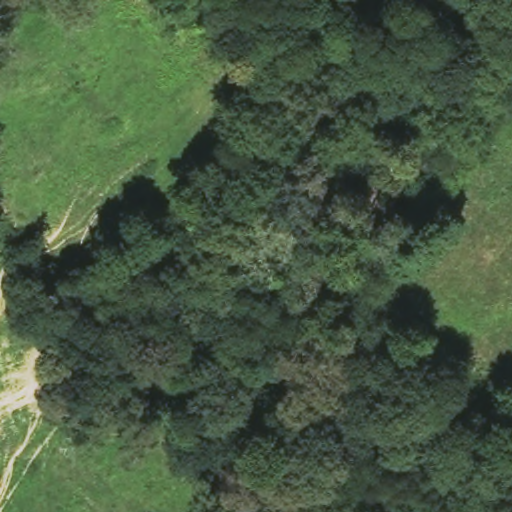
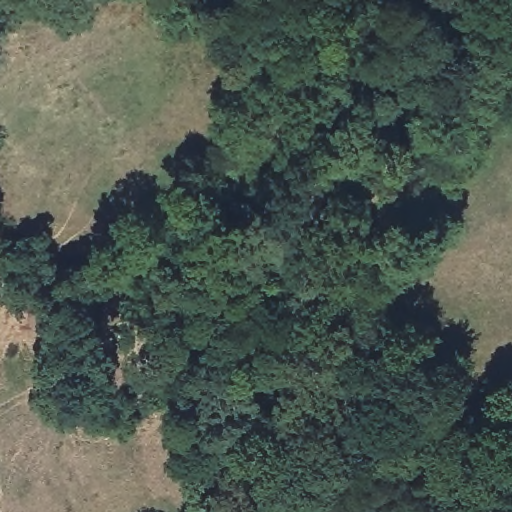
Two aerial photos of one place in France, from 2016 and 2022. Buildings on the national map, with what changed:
unchanged [(61,309),(71,321),(60,333),(49,321),(61,309)]

